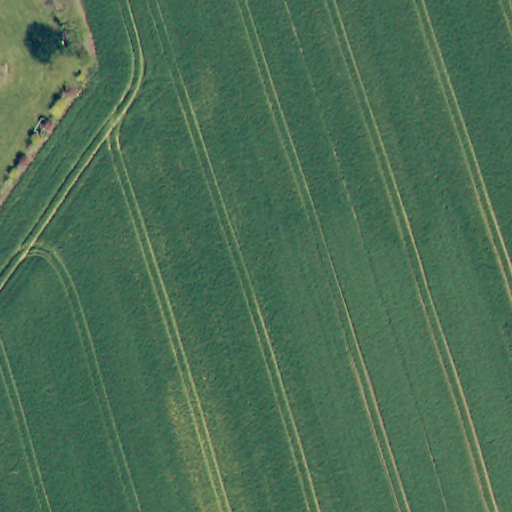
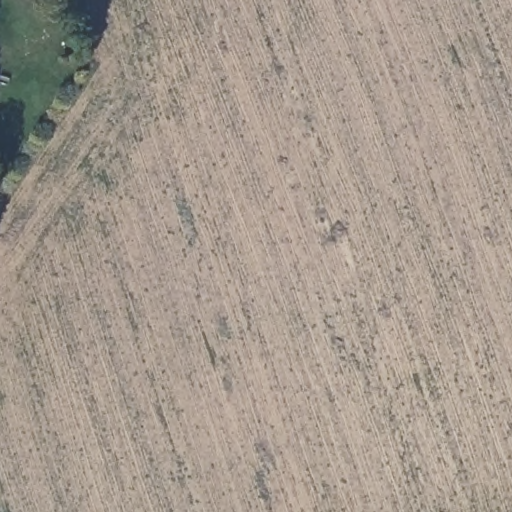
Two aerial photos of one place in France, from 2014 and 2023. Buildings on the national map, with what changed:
[]

